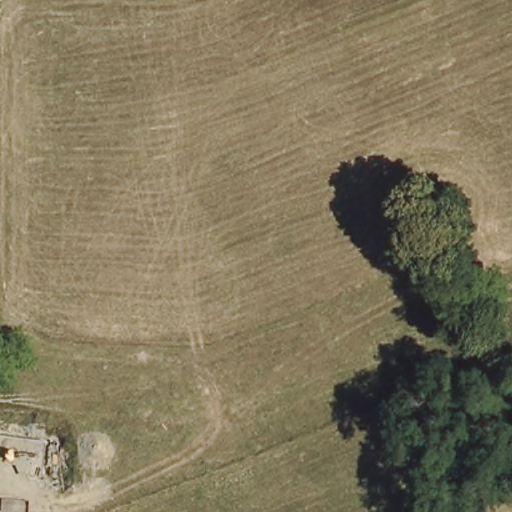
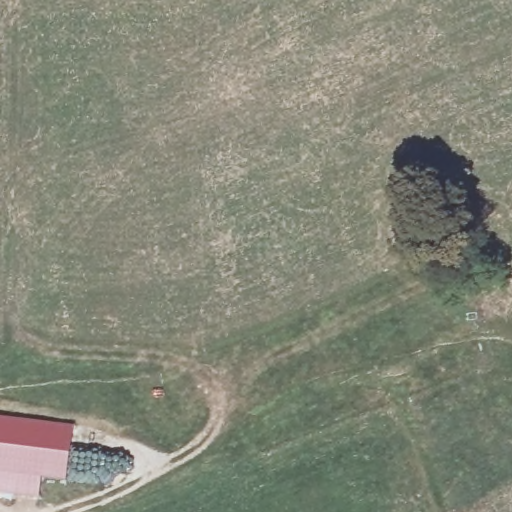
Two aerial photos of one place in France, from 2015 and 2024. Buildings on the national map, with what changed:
new [(76,425),(70,481),(45,477),(43,498),(0,493),(0,416),(76,425)]

